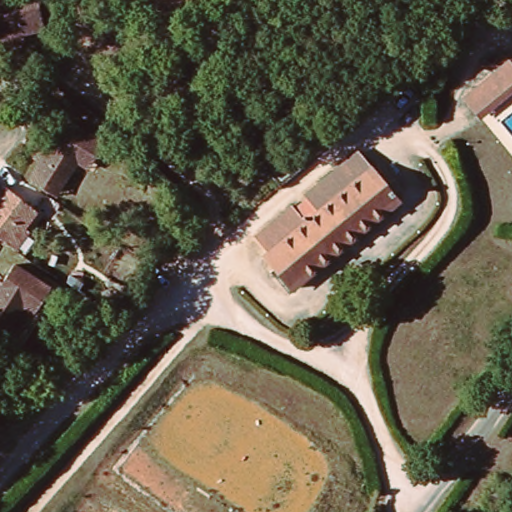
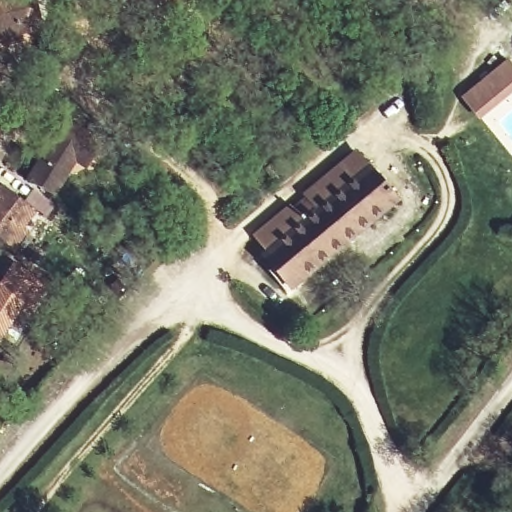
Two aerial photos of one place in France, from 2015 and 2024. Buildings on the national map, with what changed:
unchanged [(0,0),(37,0),(45,22),(0,37),(0,0)]
unchanged [(149,0),(181,0),(165,16),(149,0)]
unchanged [(480,115),(467,98),(511,64),(512,65),(512,90),(480,115)]
unchanged [(94,160),(78,148),(51,187),(30,174),(41,157),(33,151),(47,129),(55,134),(66,117),(107,141),(94,160)]
unchanged [(354,152),(367,166),(372,163),(401,197),(295,291),(252,238),(287,209),(292,215),(310,202),(304,194),(354,152)]
unchanged [(0,229),(0,190),(7,180),(39,200),(13,238),(0,229)]
unchanged [(2,335),(0,334),(0,281),(2,278),(8,283),(20,266),(57,290),(45,309),(27,297),(2,335)]

